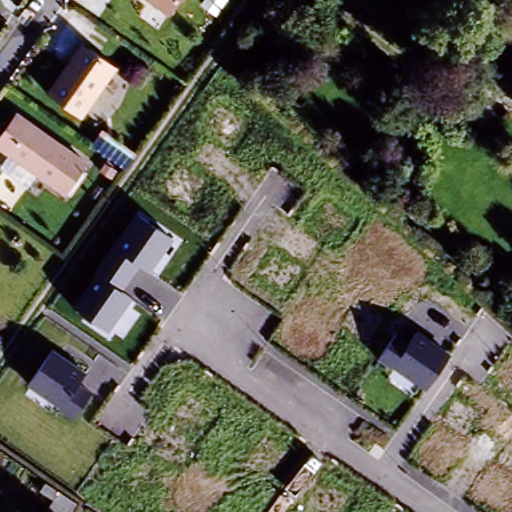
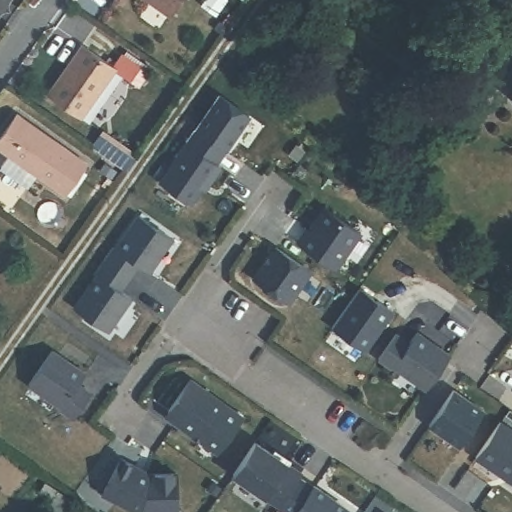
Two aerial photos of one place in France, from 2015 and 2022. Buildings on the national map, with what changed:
unchanged [(164,17),(139,0),(175,0),(164,17)]
unchanged [(78,46),(111,68),(76,119),(44,95),(78,46)]
new [(216,95),(245,116),(212,163),(183,142),(216,95)]
unchanged [(509,100),(512,97),(512,103),(509,100)]
unchanged [(81,165),(60,196),(0,156),(0,133),(11,117),(81,165)]
new [(98,137),(128,158),(118,172),(88,150),(98,137)]
new [(183,142),(212,163),(217,166),(206,181),(203,179),(186,203),(155,182),(183,142)]
new [(302,229),(304,231),(320,208),(355,233),(330,268),(293,242),(302,229)]
unchanged [(94,274),(91,271),(113,241),(117,244),(138,214),(173,239),(151,272),(139,266),(122,293),(131,300),(106,330),(73,304),(94,274)]
new [(271,247),(306,271),(284,303),(249,279),(271,247)]
new [(364,355),(332,332),(360,292),(392,314),(364,355)]
unchanged [(412,338),(416,331),(449,354),(426,389),(380,358),(398,329),(412,338)]
unchanged [(85,370),(79,381),(92,390),(75,417),(28,386),(54,349),(85,370)]
new [(188,434),(173,424),(177,419),(163,410),(184,380),(237,417),(216,447),(213,452),(188,434)]
new [(453,392),(483,413),(459,448),(428,428),(453,392)]
new [(499,424),(512,434),(512,485),(475,459),(499,424)]
new [(275,453),(291,464),(289,468),(302,477),(299,482),(278,512),(260,512),(226,488),(256,445),(273,457),(275,453)]
new [(136,469),(138,472),(150,478),(180,477),(180,512),(133,512),(105,498),(123,462),(136,469)]
new [(312,491),(314,489),(346,512),(278,512),(299,482),(312,491)]

